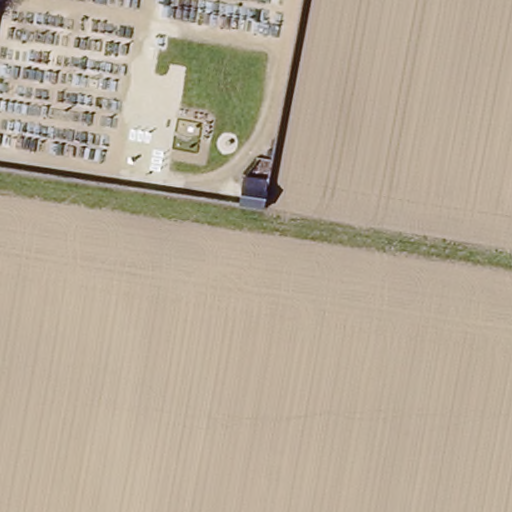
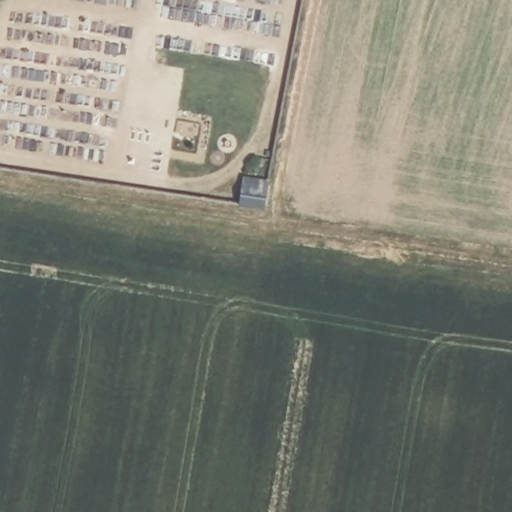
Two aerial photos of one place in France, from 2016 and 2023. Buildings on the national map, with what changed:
unchanged [(244,179),(267,183),(262,209),(240,205),(244,179)]

